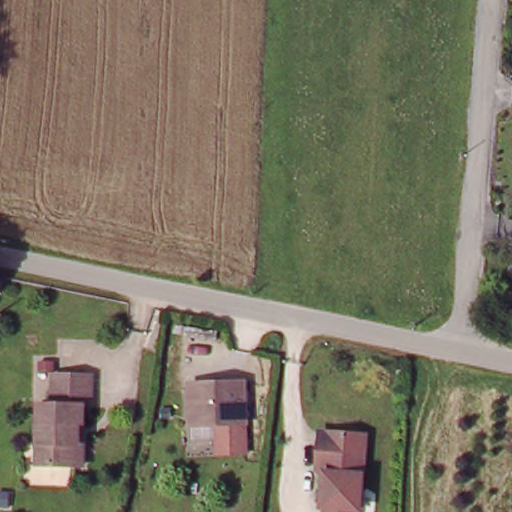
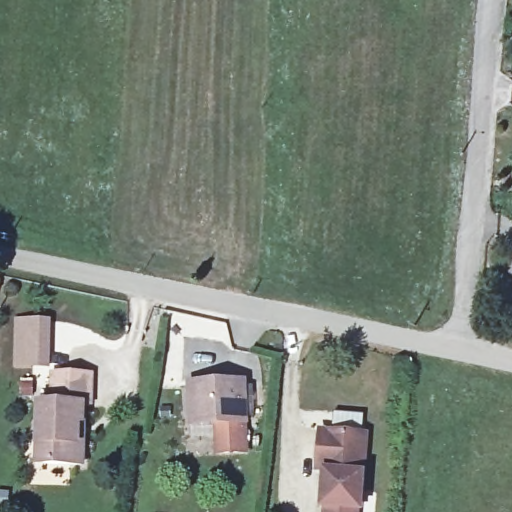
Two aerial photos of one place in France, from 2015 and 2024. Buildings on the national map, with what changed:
new [(13,317),(51,317),(50,368),(11,367),(13,317)]
unchanged [(36,438),(38,399),(51,399),(52,369),(90,370),(89,401),(77,401),(76,430),(81,430),(80,460),(43,459),(36,459),(36,438)]
unchanged [(190,383),(239,381),(240,418),(190,421),(190,383)]
unchanged [(323,465),(317,465),(320,427),(360,430),(355,506),(354,512),(320,512),(321,504),(323,465)]

